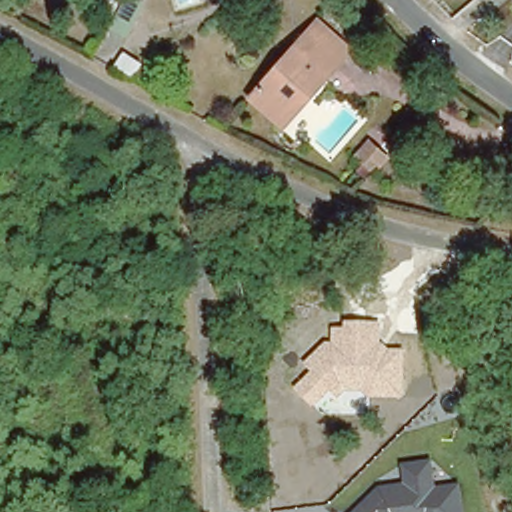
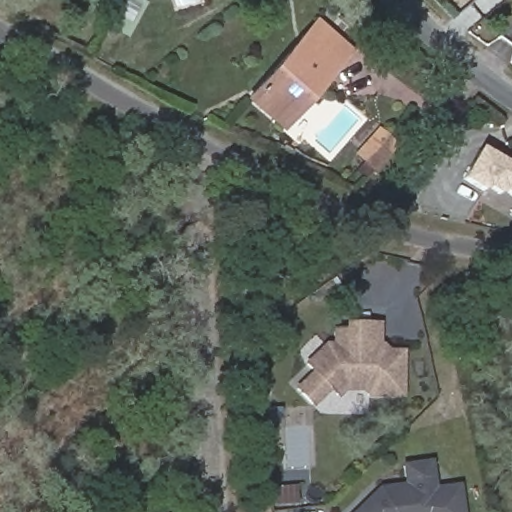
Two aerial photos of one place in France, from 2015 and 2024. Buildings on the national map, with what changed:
unchanged [(105,0),(120,0),(113,14),(101,8),(105,0)]
unchanged [(113,24),(126,0),(143,0),(126,31),(113,24)]
unchanged [(311,19),(345,49),(289,113),(256,84),(311,19)]
unchanged [(123,53),(141,63),(134,76),(116,66),(123,53)]
new [(482,192),(461,180),(480,148),(512,167),(512,200),(487,184),(482,192)]
unchanged [(401,398),(368,397),(368,393),(345,392),(335,400),(329,392),(312,409),(293,388),(311,371),(304,365),(326,341),(330,342),(331,327),(343,326),(344,322),(380,324),(379,343),(386,349),(404,350),(401,398)]
unchanged [(437,488),(461,486),(465,512),(356,512),(380,487),(404,484),(402,464),(435,461),(437,488)]

